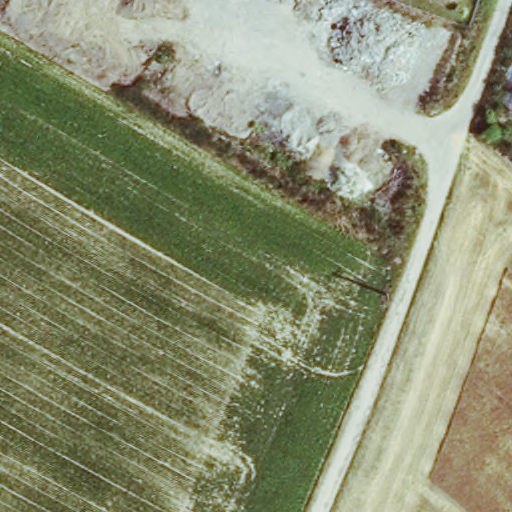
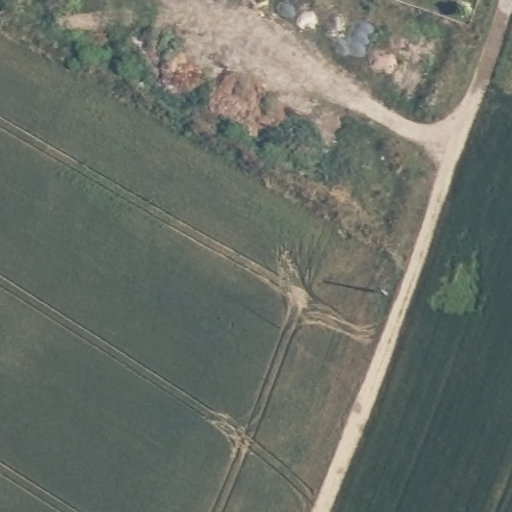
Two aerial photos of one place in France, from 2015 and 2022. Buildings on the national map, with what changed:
[]

